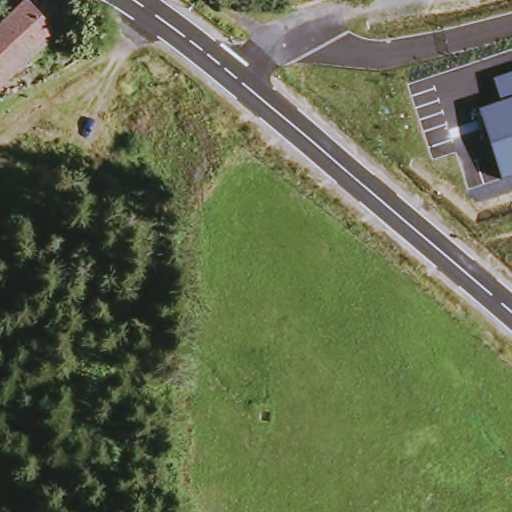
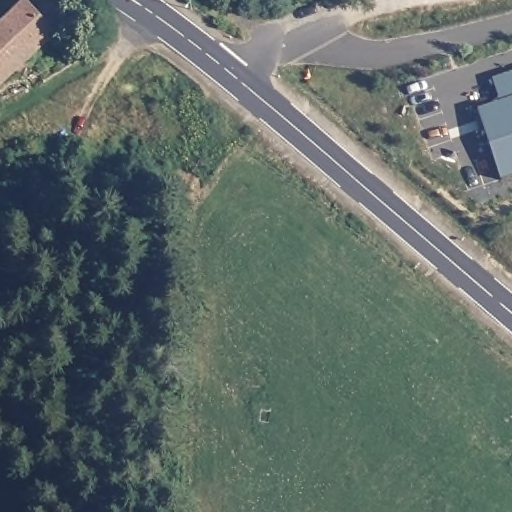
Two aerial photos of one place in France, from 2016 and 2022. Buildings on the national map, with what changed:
unchanged [(13,8),(22,18),(33,8),(52,29),(40,39),(0,77),(0,21),(13,8)]
unchanged [(501,179),(477,109),(499,101),(493,77),(512,71),(512,175),(501,179)]

